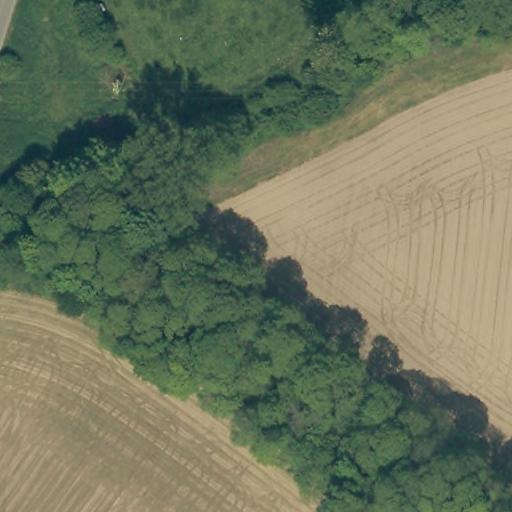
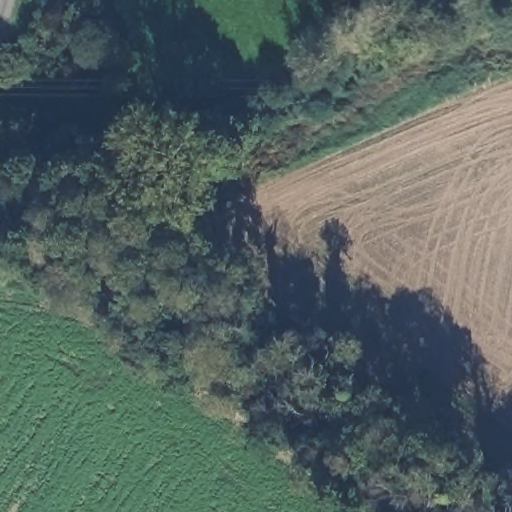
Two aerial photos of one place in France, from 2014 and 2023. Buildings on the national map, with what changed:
[]

